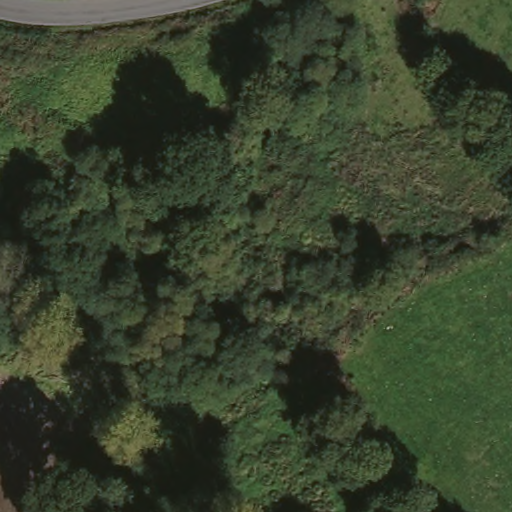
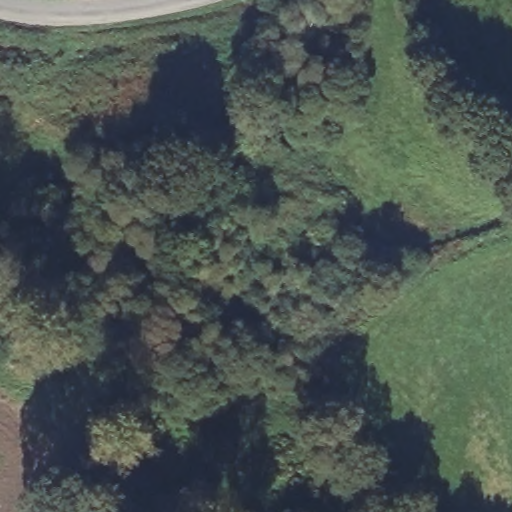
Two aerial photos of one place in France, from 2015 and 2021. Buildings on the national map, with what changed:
[]

